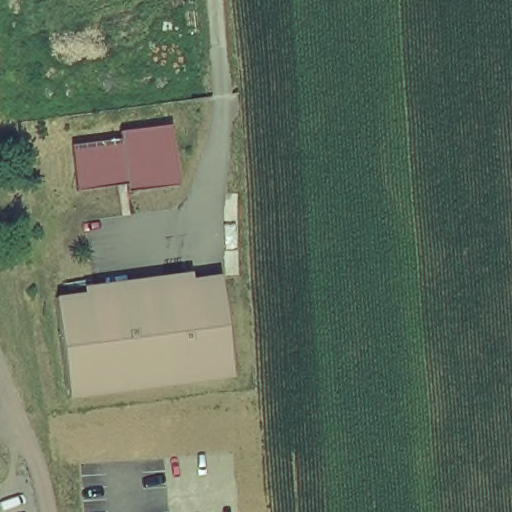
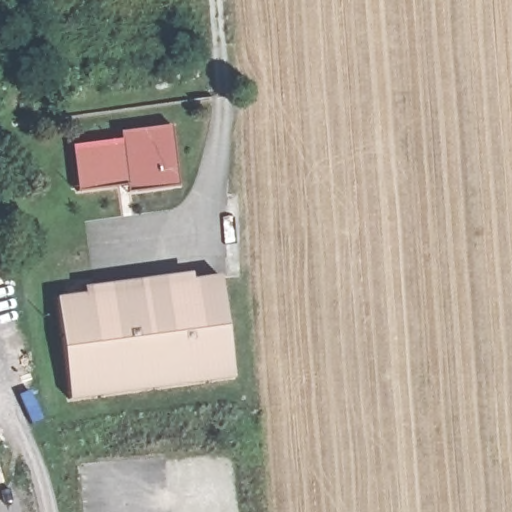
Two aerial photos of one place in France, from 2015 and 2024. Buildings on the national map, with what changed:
unchanged [(125,186),(79,192),(74,146),(119,141),(117,132),(172,124),(179,187),(139,192),(127,194),(125,186)]
unchanged [(217,268),(234,372),(72,397),(55,292),(217,268)]

